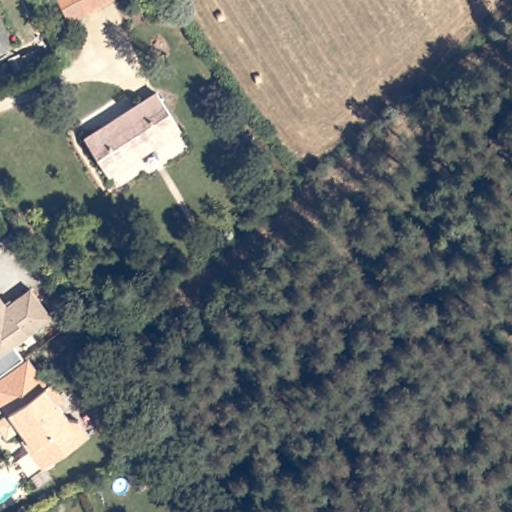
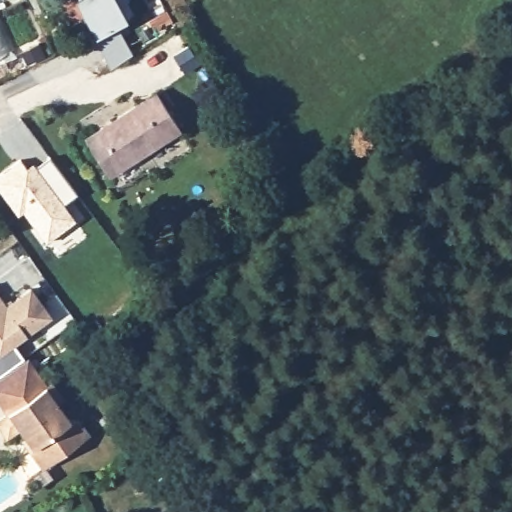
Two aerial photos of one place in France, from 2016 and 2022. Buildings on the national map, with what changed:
new [(82,15),(69,22),(56,0),(115,0),(127,20),(95,36),(82,15)]
demolished [(59,0),(95,0),(66,15),(59,0)]
unchanged [(154,87),(179,124),(111,171),(87,135),(154,87)]
new [(21,163),(32,179),(38,175),(35,171),(49,160),(76,196),(62,206),(74,222),(46,243),(24,212),(19,216),(0,191),(0,178),(21,163)]
unchanged [(5,306),(30,286),(53,318),(15,346),(24,358),(0,375),(0,298),(5,306)]
unchanged [(0,401),(0,379),(29,360),(46,387),(7,411),(0,401)]
unchanged [(52,383),(64,401),(59,405),(71,423),(76,420),(87,438),(41,468),(39,466),(37,467),(26,449),(31,445),(20,429),(4,439),(0,432),(0,415),(7,411),(46,387),(52,383)]

